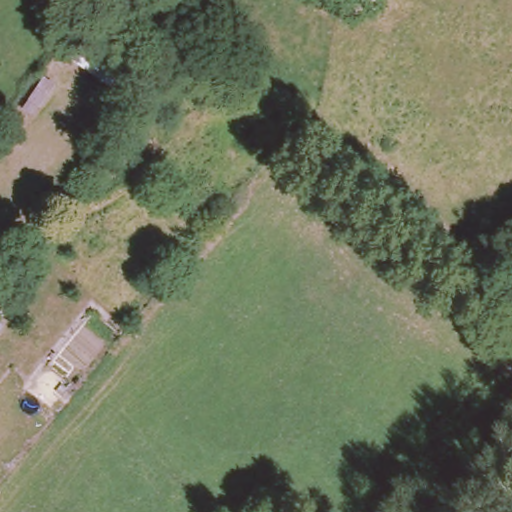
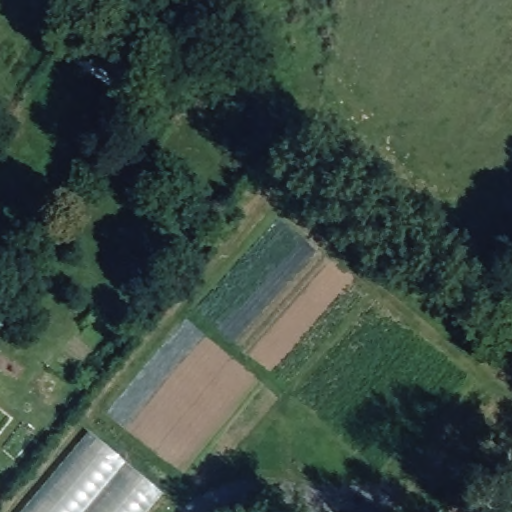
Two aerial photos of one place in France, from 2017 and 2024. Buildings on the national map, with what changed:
unchanged [(90,30),(144,68),(121,98),(67,61),(90,30)]
new [(161,492),(145,512),(24,512),(90,433),(161,492)]

